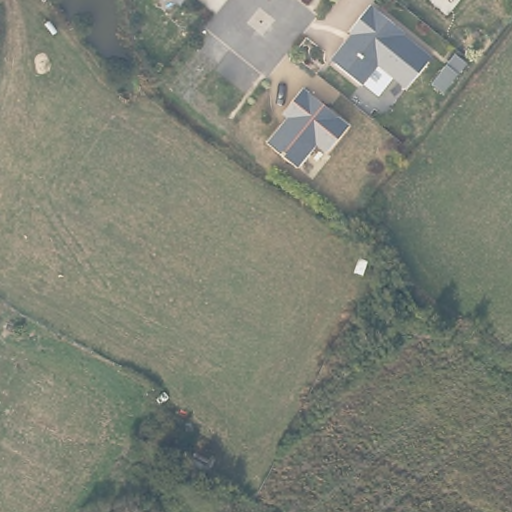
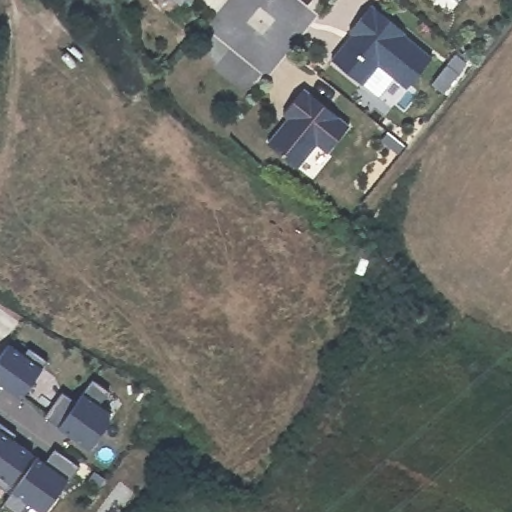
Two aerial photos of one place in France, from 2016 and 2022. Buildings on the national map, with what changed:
unchanged [(182,2),(179,0),(184,0),(182,2)]
unchanged [(407,90),(379,66),(363,86),(332,60),(347,42),(353,35),(350,32),(372,6),(434,57),(407,90)]
unchanged [(325,154),(315,145),(295,167),(266,140),(282,122),(288,117),(284,112),(305,88),(349,127),(325,154)]
new [(10,342),(24,352),(29,347),(45,357),(41,363),(44,366),(21,398),(0,382),(0,356),(10,342)]
new [(63,389),(77,400),(84,391),(93,378),(109,390),(100,403),(111,412),(88,447),(58,427),(44,416),(63,389)]
demolished [(49,512),(0,512),(0,402),(82,447),(49,512)]
new [(10,482),(5,489),(0,485),(0,430),(32,452),(10,482)]
new [(19,512),(16,512),(3,503),(12,491),(37,456),(45,461),(54,448),(79,465),(67,477),(43,512),(28,502),(19,512)]

